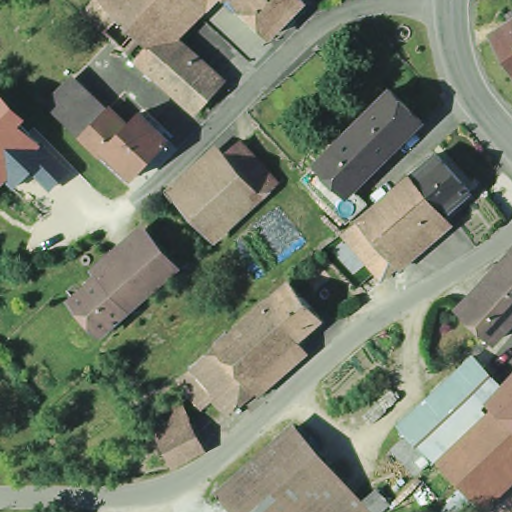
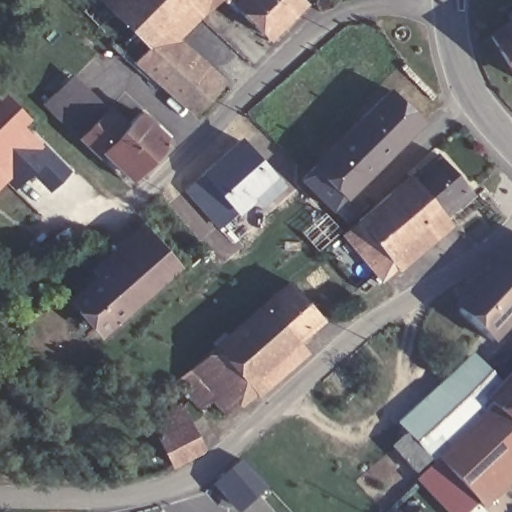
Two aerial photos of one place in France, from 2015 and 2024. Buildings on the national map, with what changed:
unchanged [(312,4),(274,40),(221,1),(185,40),(230,80),(198,115),(135,61),(147,48),(101,0),(309,0),(312,4)]
unchanged [(512,28),(512,62),(496,38),(512,28)]
unchanged [(105,105),(114,99),(175,141),(132,182),(97,159),(80,135),(43,103),(72,73),(105,105)]
unchanged [(427,125),(402,153),(412,167),(439,147),(477,202),(382,282),(342,237),(352,227),(295,176),(354,109),(363,113),(387,85),(427,125)]
unchanged [(0,193),(0,103),(42,153),(0,193)]
unchanged [(275,173),(208,232),(176,195),(242,137),(275,173)]
unchanged [(152,228),(180,260),(128,305),(100,272),(152,228)]
unchanged [(512,263),(512,331),(500,344),(466,312),(512,263)]
unchanged [(100,272),(128,305),(102,328),(73,295),(100,272)]
unchanged [(288,282),(319,317),(292,339),(262,304),(288,282)]
unchanged [(235,325),(262,304),(292,339),(245,380),(250,386),(227,406),(190,364),(235,325)]
unchanged [(493,452),(502,442),(480,424),(438,464),(415,478),(392,447),(410,438),(397,428),(477,356),(505,383),(512,375),(512,467),(493,452)]
unchanged [(193,424),(205,450),(178,463),(167,436),(193,424)]
demolished [(382,512),(238,512),(221,493),(298,426),(367,503),(380,492),(390,504),(382,512)]

